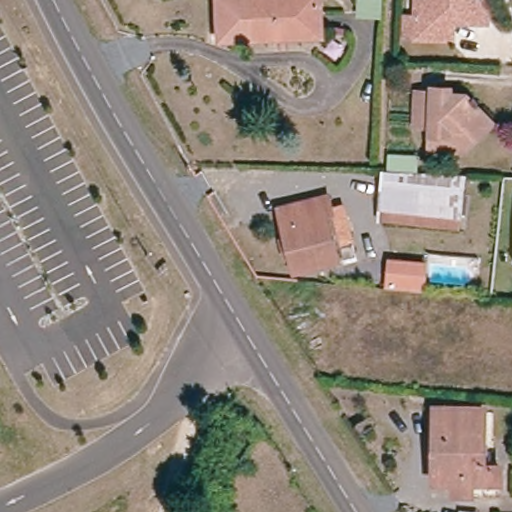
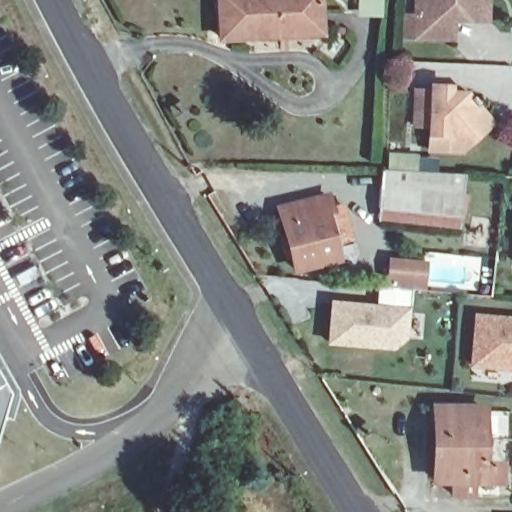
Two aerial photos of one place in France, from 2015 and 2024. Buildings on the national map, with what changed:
unchanged [(319,27),(280,29),(280,34),(225,36),(224,0),(318,0),(319,27)]
unchanged [(408,19),(417,20),(418,0),(429,1),(430,0),(489,0),(487,23),(480,23),(454,22),(453,41),(416,40),(407,40),(408,19)]
unchanged [(461,154),(429,152),(430,130),(413,128),(414,115),(416,93),(431,94),(437,95),(438,87),(450,88),(450,95),(450,105),(466,96),(471,103),(474,101),(478,107),(475,110),(479,115),(490,129),(473,142),(461,154)]
unchanged [(461,185),(461,225),(379,221),(386,181),(461,185)]
unchanged [(330,201),(333,210),(343,209),(356,258),(298,274),(281,215),(330,201)]
unchanged [(390,256),(444,257),(443,287),(390,286),(390,256)]
new [(410,306),(407,340),(394,351),(325,345),(330,300),(410,306)]
demolished [(307,303),(331,340),(312,351),(288,315),(307,303)]
new [(512,316),(512,372),(470,368),(473,312),(512,316)]
new [(19,393),(12,417),(4,416),(0,429),(0,355),(16,383),(19,393)]
unchanged [(485,408),(481,467),(497,468),(495,482),(472,482),(471,495),(452,493),(452,481),(434,480),(436,435),(445,435),(446,405),(485,408)]

